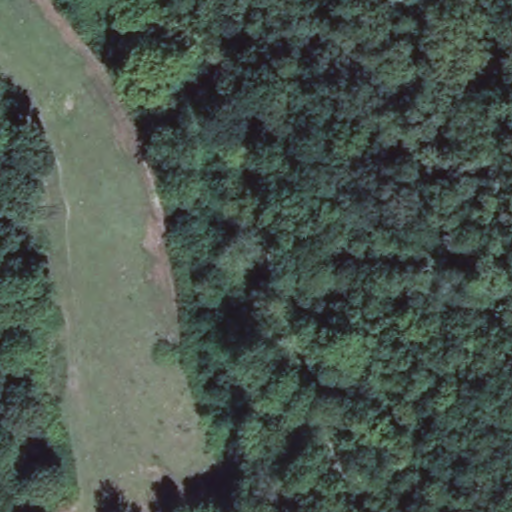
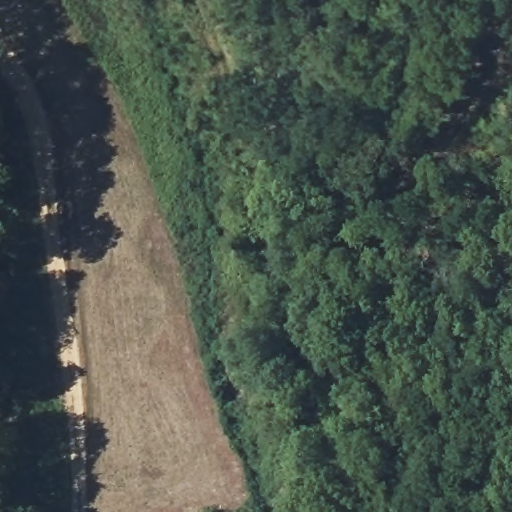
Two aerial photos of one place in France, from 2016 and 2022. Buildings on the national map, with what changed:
[]

